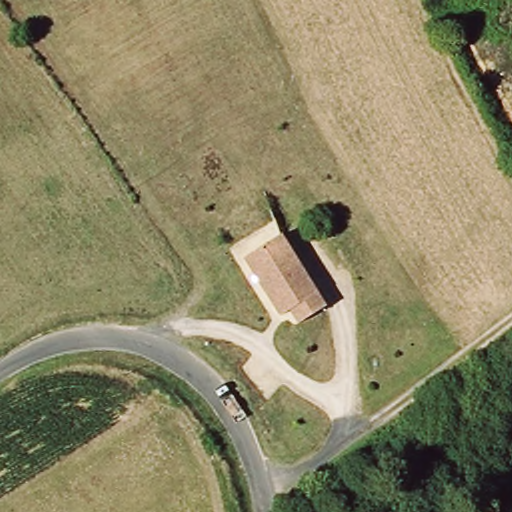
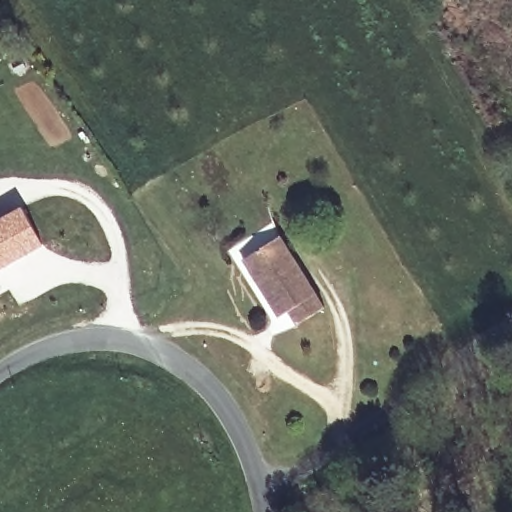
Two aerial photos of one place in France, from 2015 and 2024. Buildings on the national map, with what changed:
new [(45,246),(0,270),(0,220),(23,207),(45,246)]
unchanged [(248,264),(283,240),(331,309),(305,327),(295,314),(286,320),(248,264)]

